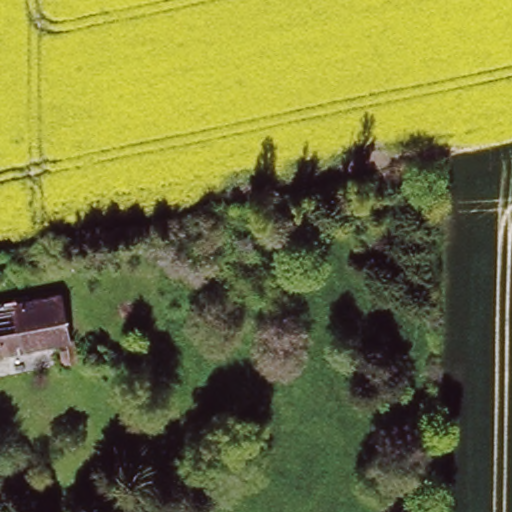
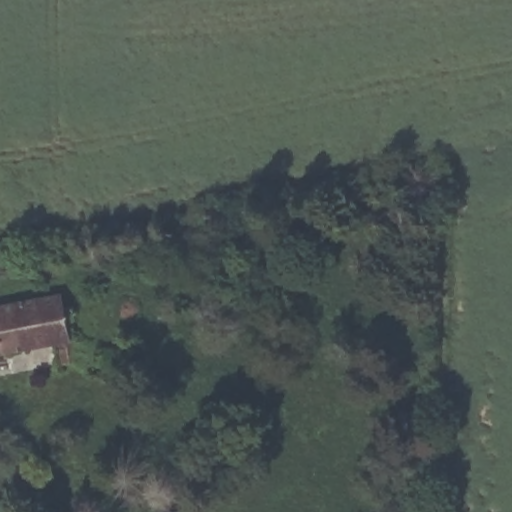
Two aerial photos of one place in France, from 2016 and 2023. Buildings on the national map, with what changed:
unchanged [(60,292),(71,344),(74,343),(78,361),(67,363),(60,340),(0,352),(0,304),(60,292)]
unchanged [(13,453),(0,463),(0,462),(0,431),(13,453)]

